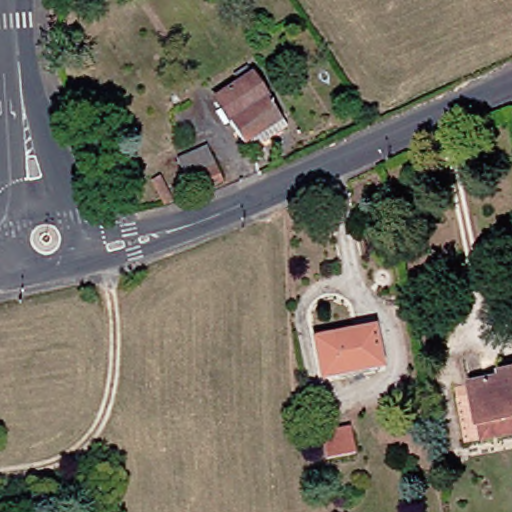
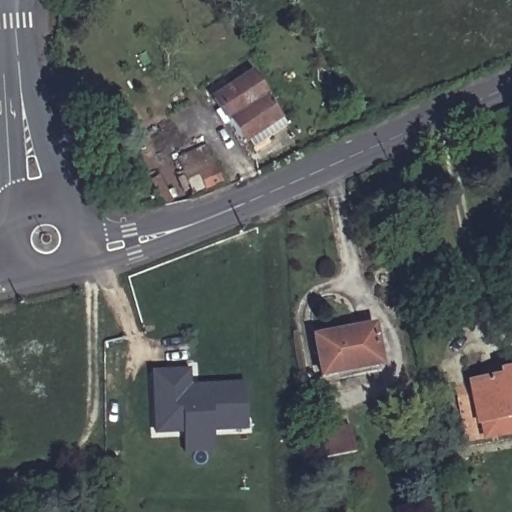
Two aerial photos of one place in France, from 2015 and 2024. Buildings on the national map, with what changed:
unchanged [(213,97),(253,75),(281,121),(240,145),(213,97)]
unchanged [(209,177),(192,182),(186,166),(202,160),(209,177)]
unchanged [(373,330),(377,368),(318,377),(312,338),(373,330)]
unchanged [(472,397),(471,391),(502,386),(499,369),(496,352),(512,350),(512,423),(507,423),(510,442),(468,451),(460,400),(472,397)]
new [(152,372),(189,369),(190,386),(246,382),(247,430),(213,432),(213,453),(184,454),(183,434),(155,435),(152,372)]
unchanged [(357,453),(330,457),(327,431),(355,428),(357,453)]

